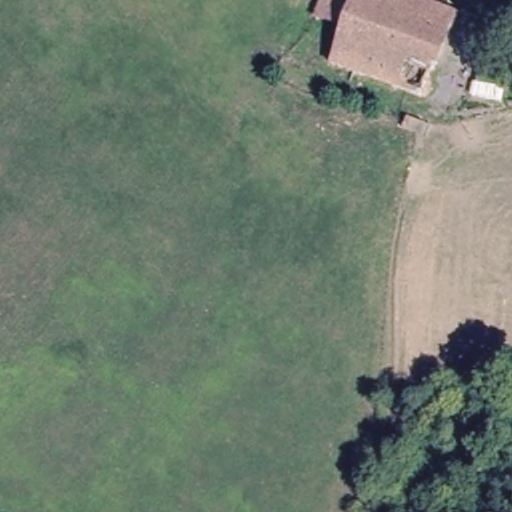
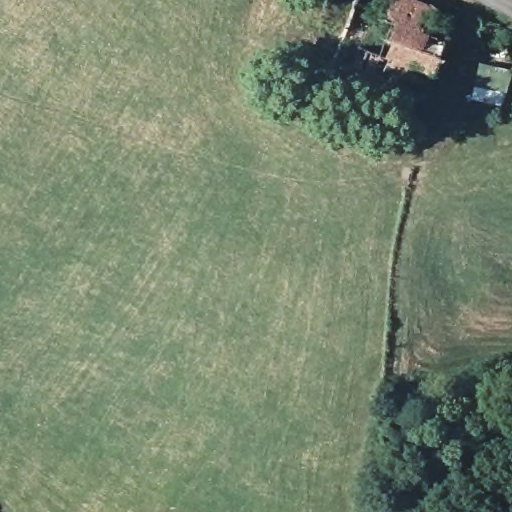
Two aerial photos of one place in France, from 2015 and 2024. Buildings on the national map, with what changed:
unchanged [(434,9),(438,0),(443,0),(451,4),(447,14),(455,17),(421,101),(329,63),(342,31),(315,20),(323,0),(413,0),(434,9)]

